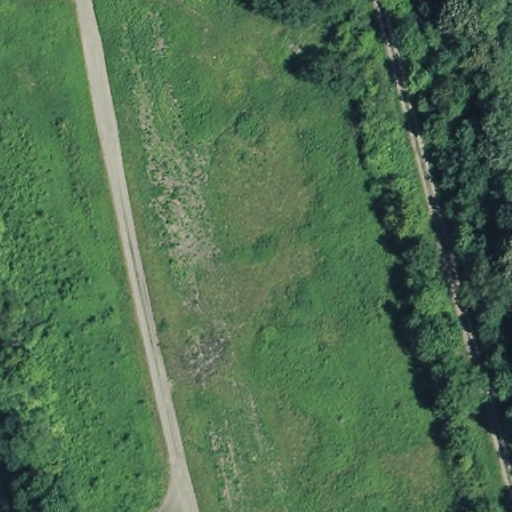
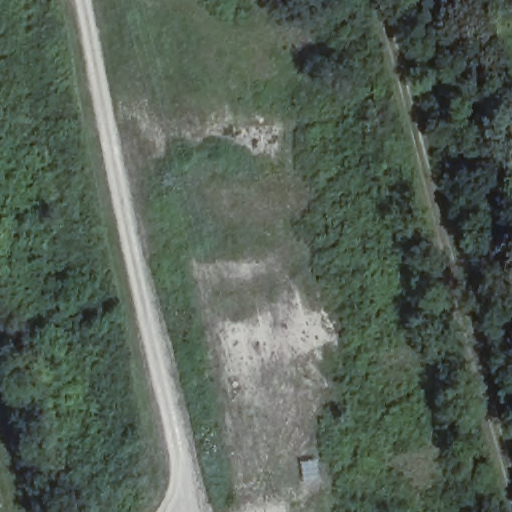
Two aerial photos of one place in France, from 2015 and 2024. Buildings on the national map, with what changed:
[]

